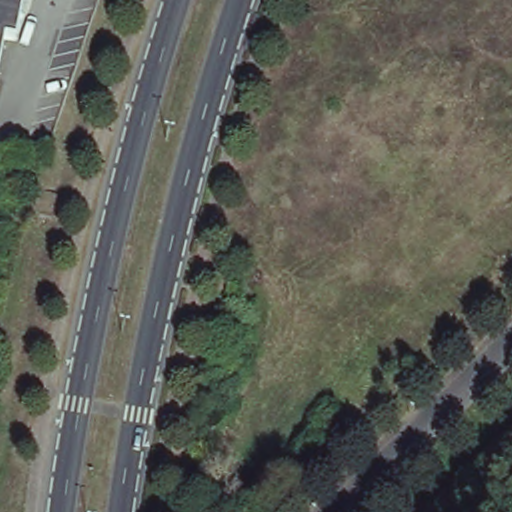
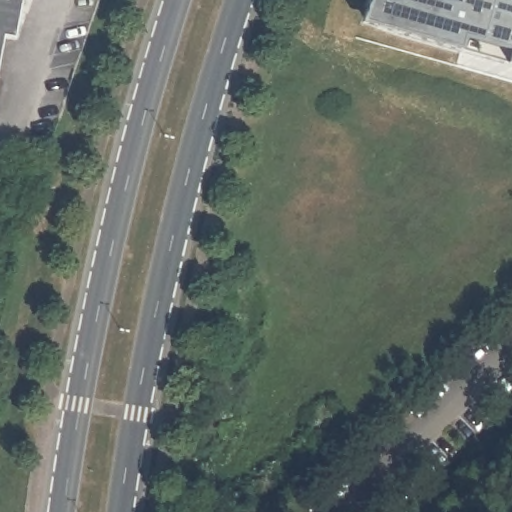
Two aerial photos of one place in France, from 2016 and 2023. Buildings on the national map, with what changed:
unchanged [(7,34),(0,73),(0,0),(22,0),(17,34),(7,34)]
new [(357,19),(364,0),(503,0),(512,3),(512,63),(357,19)]

